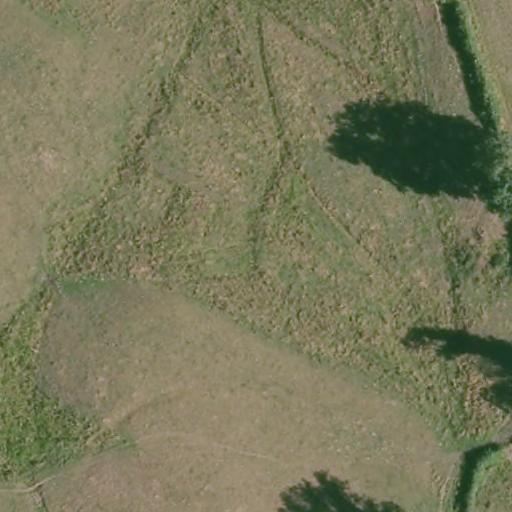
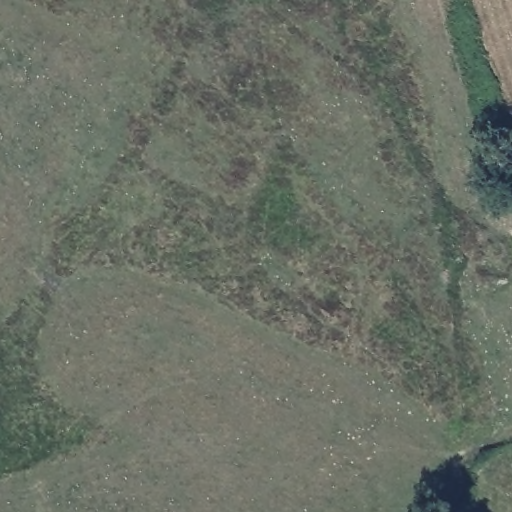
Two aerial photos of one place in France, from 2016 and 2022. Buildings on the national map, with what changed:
[]

